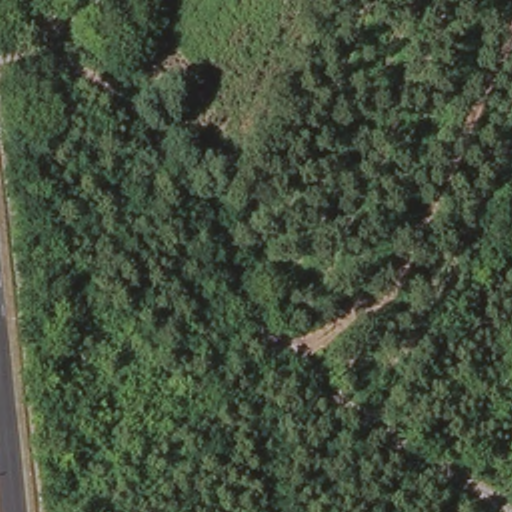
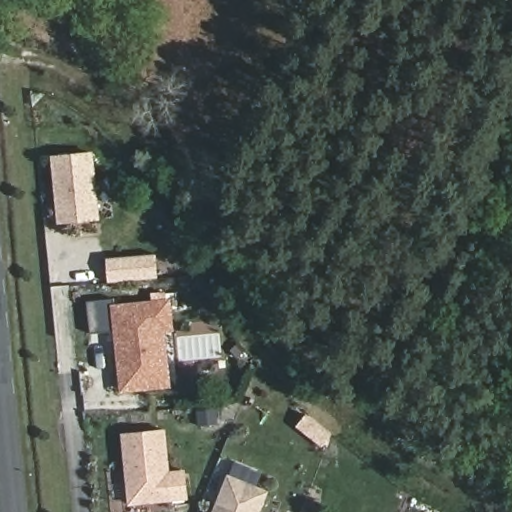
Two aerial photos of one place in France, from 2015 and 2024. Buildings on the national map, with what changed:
new [(57,225),(50,155),(94,151),(101,219),(57,225)]
new [(107,283),(105,258),(157,253),(158,278),(107,283)]
new [(120,393),(113,331),(91,333),(87,302),(114,299),(115,304),(171,298),(175,332),(166,333),(172,387),(120,393)]
new [(127,506),(120,433),(166,428),(170,470),(186,469),(190,499),(127,506)]
new [(269,490),(260,512),(212,512),(227,474),(269,490)]

